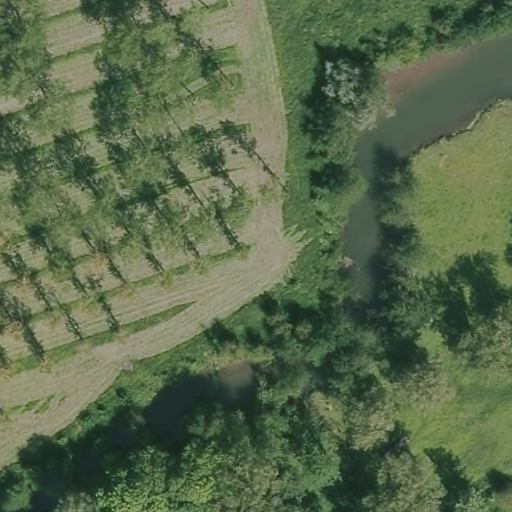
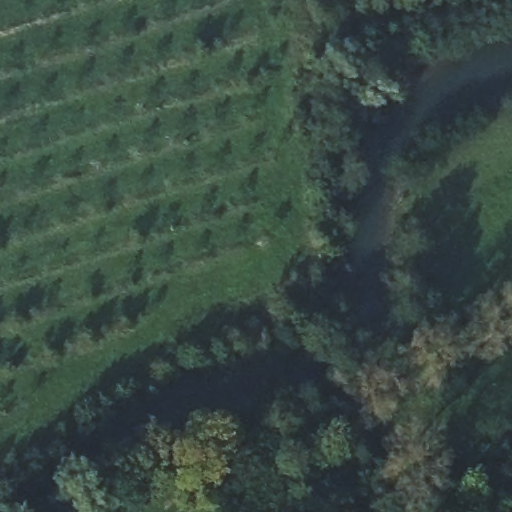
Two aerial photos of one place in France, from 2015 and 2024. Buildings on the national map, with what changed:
[]

